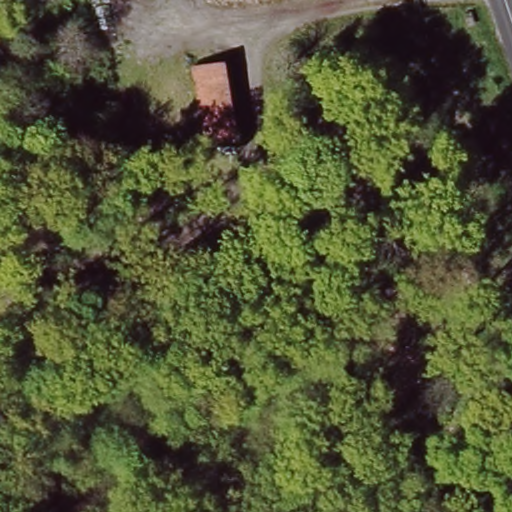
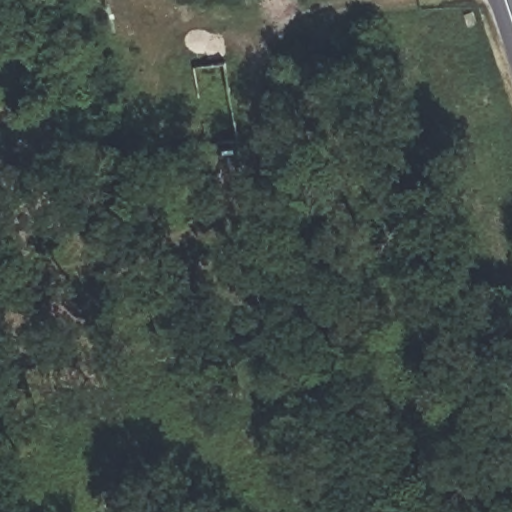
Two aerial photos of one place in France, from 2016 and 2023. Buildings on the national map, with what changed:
unchanged [(192,99),(187,79),(185,66),(223,58),(240,131),(202,140),(192,99)]

